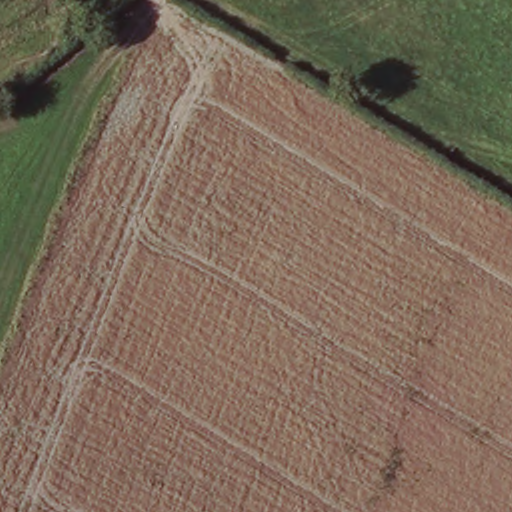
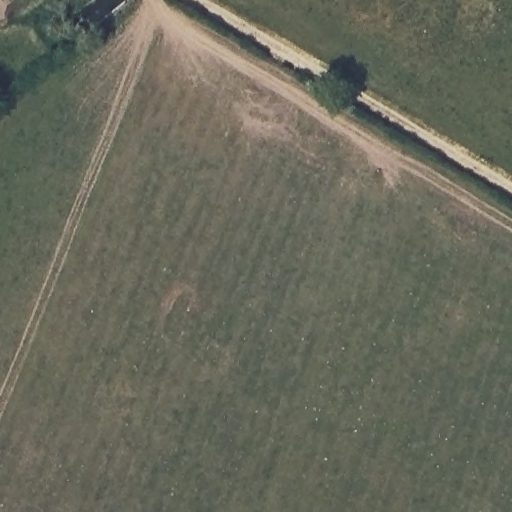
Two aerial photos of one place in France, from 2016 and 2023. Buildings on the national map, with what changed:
[]

